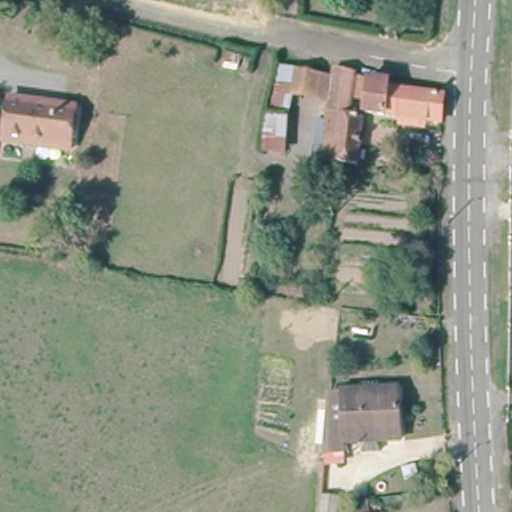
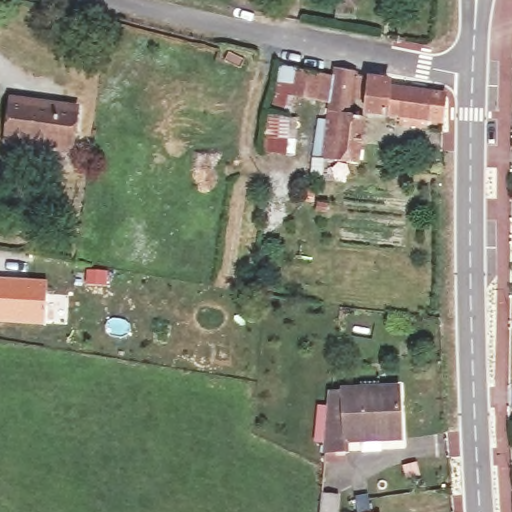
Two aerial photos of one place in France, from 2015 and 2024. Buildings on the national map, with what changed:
unchanged [(348,70),(346,110),(356,111),(353,159),(318,155),(327,66),(348,70)]
unchanged [(286,91),(290,67),(312,72),(308,94),(286,91)]
unchanged [(438,115),(358,106),(362,74),(380,77),(379,83),(440,91),(438,115)]
unchanged [(43,141),(3,140),(8,94),(74,101),(71,134),(71,145),(43,141)]
unchanged [(290,119),(288,150),(258,148),(258,116),(290,119)]
new [(46,320),(0,317),(0,276),(49,279),(46,320)]
unchanged [(330,449),(330,437),(336,384),(401,375),(407,426),(351,434),(352,445),(330,449)]
unchanged [(337,491),(335,512),(318,512),(320,488),(337,491)]

